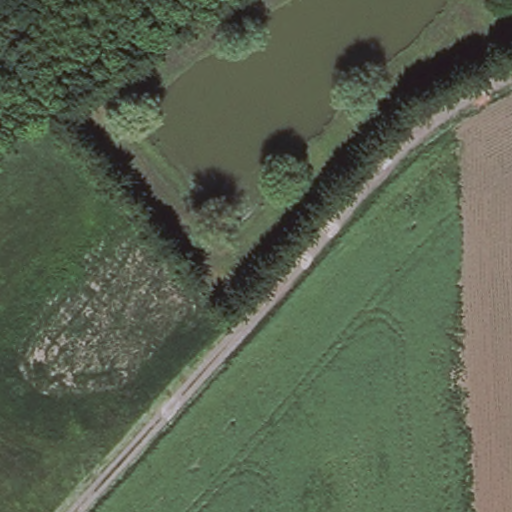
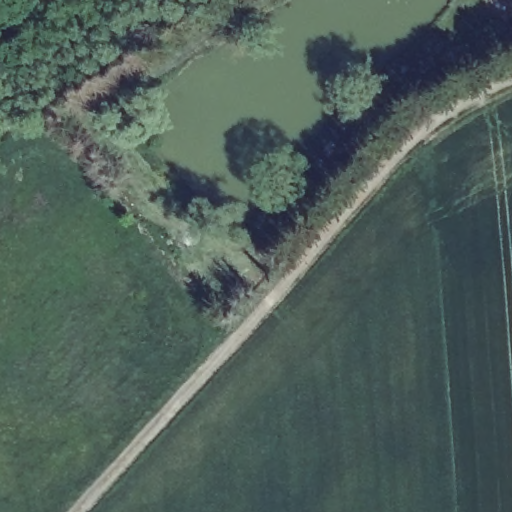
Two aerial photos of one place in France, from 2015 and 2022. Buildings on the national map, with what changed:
unchanged [(511,5),(512,0),(512,5),(511,5)]

